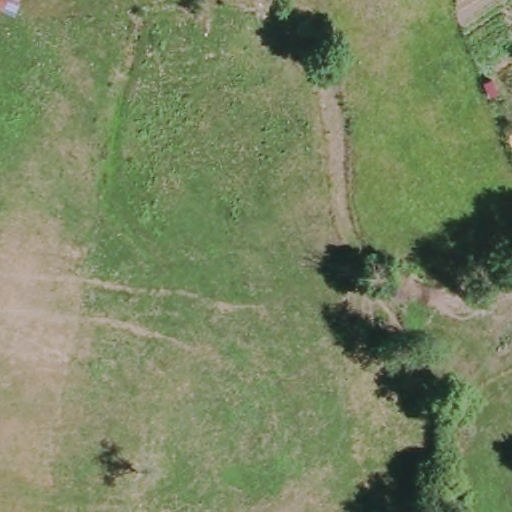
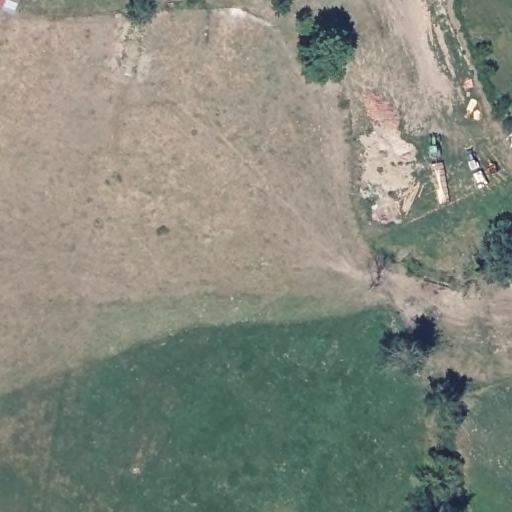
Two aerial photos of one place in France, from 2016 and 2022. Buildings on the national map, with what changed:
unchanged [(0,2),(0,0),(24,0),(21,9),(0,2)]

